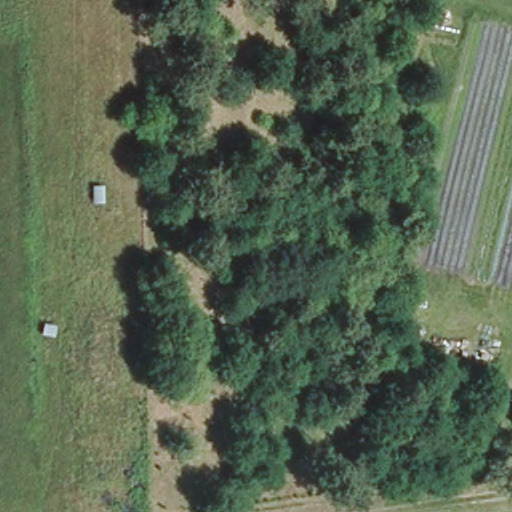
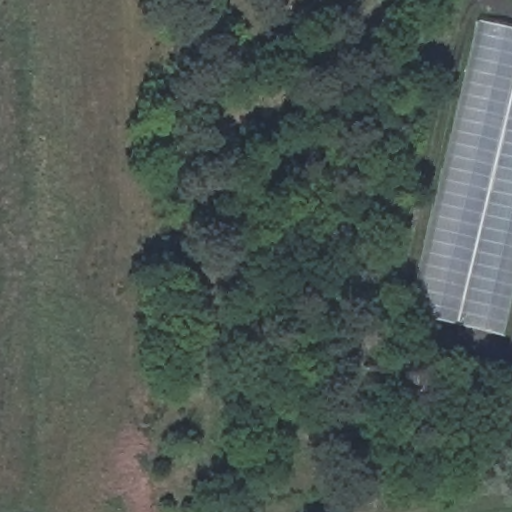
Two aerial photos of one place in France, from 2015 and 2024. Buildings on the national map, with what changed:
new [(477,22),(512,30),(512,295),(502,336),(410,314),(477,22)]
unchanged [(512,417),(512,422),(511,421),(512,417)]

